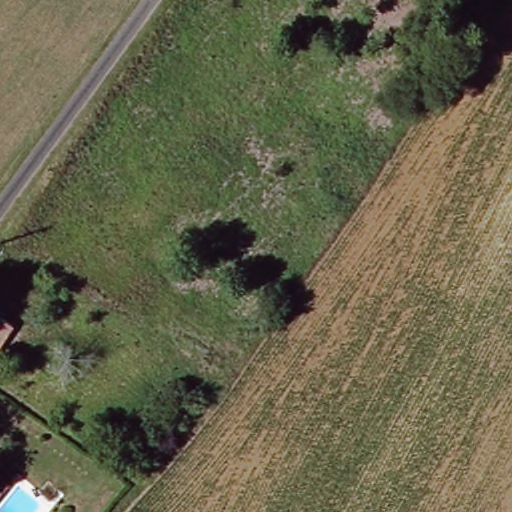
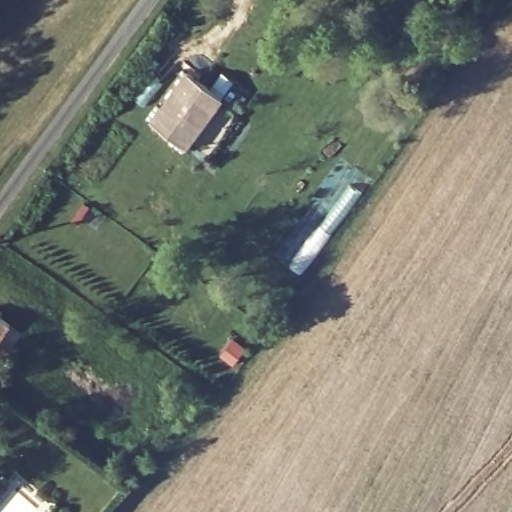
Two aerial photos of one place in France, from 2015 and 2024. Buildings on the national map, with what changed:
new [(151,119),(187,71),(224,98),(190,147),(151,119)]
unchanged [(0,343),(0,318),(12,327),(0,343)]
unchanged [(0,489),(2,492),(0,493),(0,489)]

